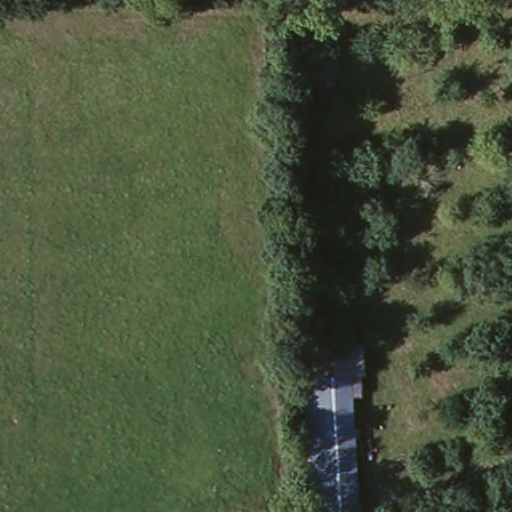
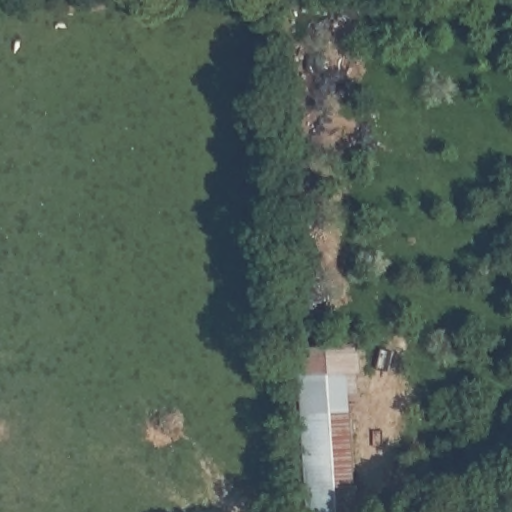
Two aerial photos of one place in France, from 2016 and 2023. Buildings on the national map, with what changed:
unchanged [(300,350),(360,347),(362,396),(352,395),(353,413),(305,412),(300,350)]
unchanged [(358,413),(361,512),(312,512),(305,412),(358,413)]

